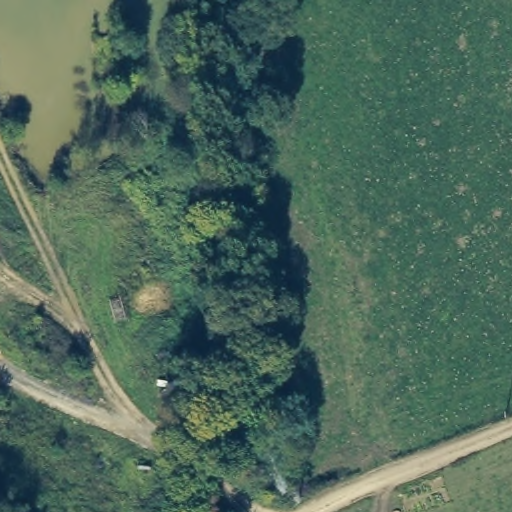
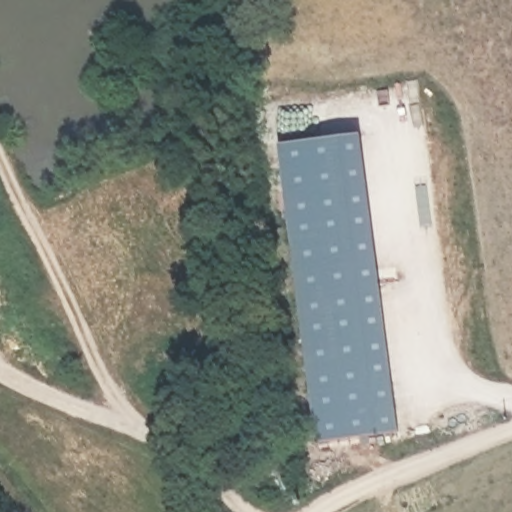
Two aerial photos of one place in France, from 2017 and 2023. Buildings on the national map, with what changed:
new [(278,145),(360,134),(398,432),(316,442),(278,145)]

